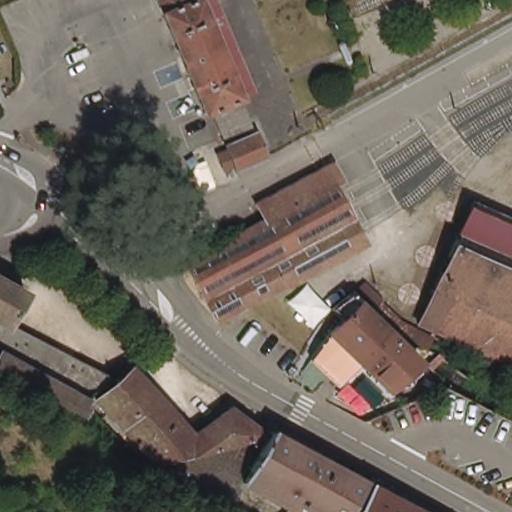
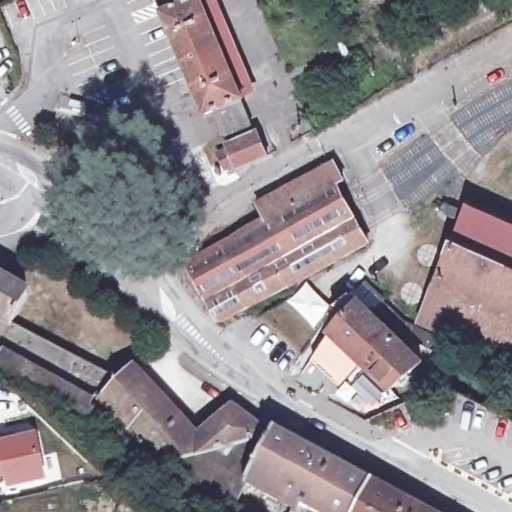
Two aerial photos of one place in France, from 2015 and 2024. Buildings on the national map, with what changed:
unchanged [(240,90),(250,105),(260,133),(270,155),(239,175),(225,143),(205,110),(161,13),(158,0),(220,0),(257,86),(240,90)]
unchanged [(188,262),(264,218),(253,200),(337,161),(352,184),(340,191),(375,242),(222,326),(188,262)]
unchanged [(512,213),(512,364),(418,325),(480,197),(512,213)]
unchanged [(0,322),(0,278),(32,297),(20,320),(117,378),(91,408),(0,351),(0,350),(13,330),(0,322)]
unchanged [(326,340),(340,326),(329,316),(344,305),(350,309),(383,337),(358,366),(326,340)]
unchanged [(386,393),(358,366),(383,337),(412,362),(386,393)]
unchanged [(306,364),(326,340),(358,366),(340,390),(306,364)]
unchanged [(416,370),(426,380),(411,395),(401,385),(416,370)]
unchanged [(100,408),(114,394),(135,373),(197,434),(229,408),(232,405),(263,436),(255,439),(166,472),(115,421),(100,408)]
unchanged [(246,485),(271,500),(263,512),(237,512),(233,510),(166,472),(255,439),(263,436),(276,434),(246,485)]
unchanged [(372,486),(358,512),(317,512),(303,505),(299,512),(293,512),(271,500),(246,485),(276,434),(372,486)]
new [(46,482),(5,490),(3,479),(0,479),(0,442),(38,435),(46,482)]
unchanged [(372,486),(421,512),(358,512),(372,486)]

